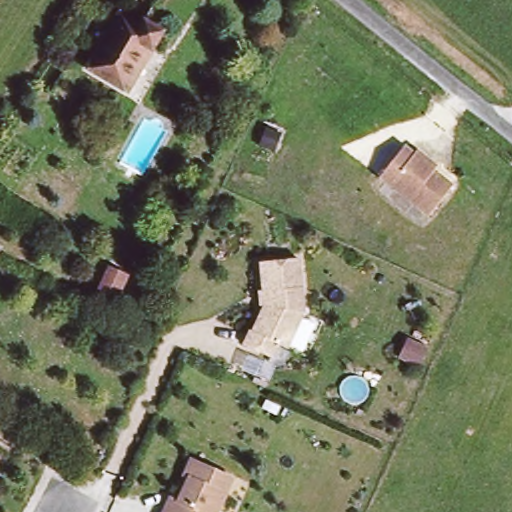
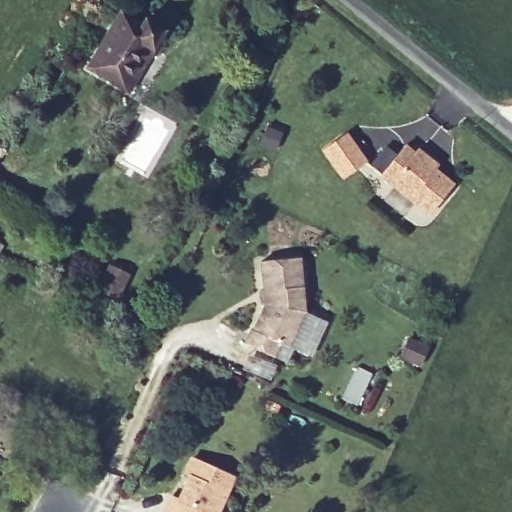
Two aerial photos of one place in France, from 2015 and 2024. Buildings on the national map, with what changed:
unchanged [(88,72),(123,14),(141,24),(147,22),(165,33),(127,94),(88,72)]
new [(347,132),(367,161),(345,177),(324,148),(347,132)]
unchanged [(427,158),(424,163),(450,183),(427,213),(377,174),(386,163),(401,144),(411,152),(413,148),(427,158)]
unchanged [(1,241),(0,244),(0,240),(1,241)]
unchanged [(301,257),(306,311),(290,346),(281,342),(275,356),(246,344),(252,330),(255,330),(268,302),(271,302),(271,289),(265,289),(263,261),(301,257)]
unchanged [(116,268),(134,276),(122,303),(104,296),(116,268)]
unchanged [(198,456),(235,472),(218,512),(164,512),(164,511),(173,492),(181,495),(198,456)]

